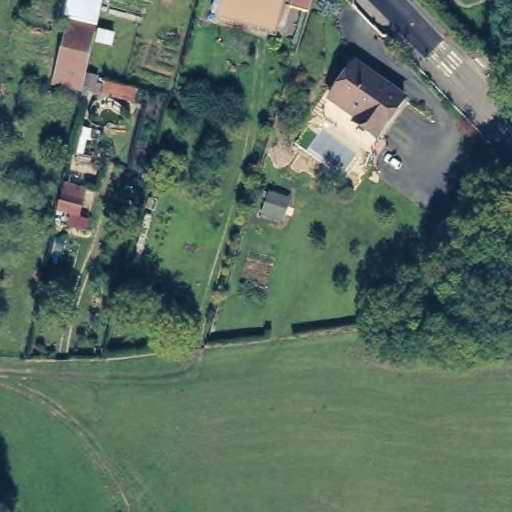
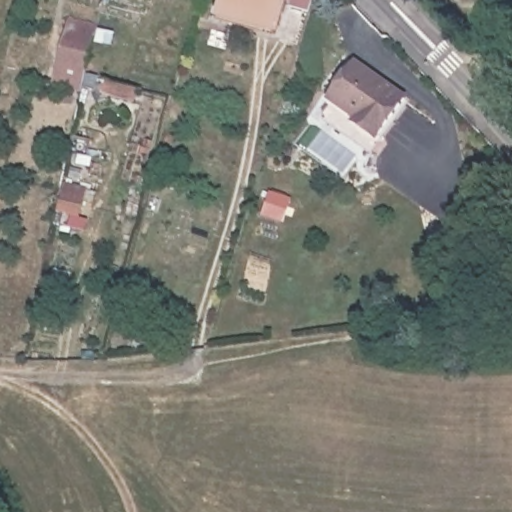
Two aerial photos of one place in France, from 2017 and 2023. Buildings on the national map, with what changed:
unchanged [(50,82),(67,0),(103,0),(83,89),(50,82)]
unchanged [(279,0),(273,27),(219,15),(223,0),(279,0)]
unchanged [(311,0),(308,10),(288,2),(289,0),(311,0)]
unchanged [(331,100),(356,61),(406,97),(381,135),(331,100)]

